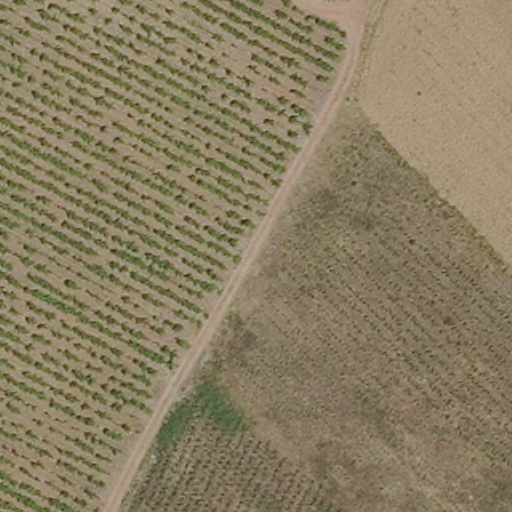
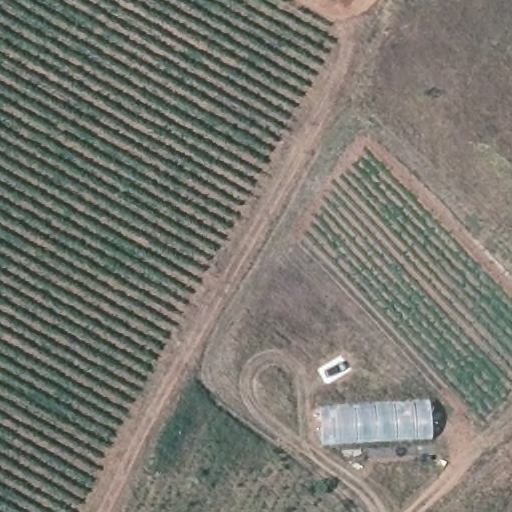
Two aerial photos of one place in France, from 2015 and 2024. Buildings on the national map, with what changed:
new [(430,398),(431,438),(321,445),(318,407),(430,398)]

